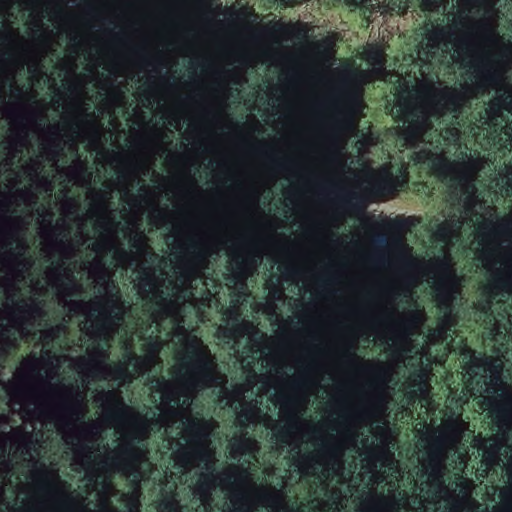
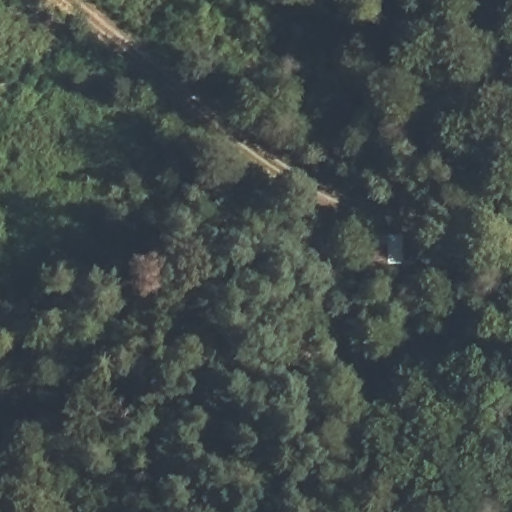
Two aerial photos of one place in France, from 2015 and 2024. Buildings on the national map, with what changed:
unchanged [(395,270),(362,272),(360,238),(394,237),(395,270)]

